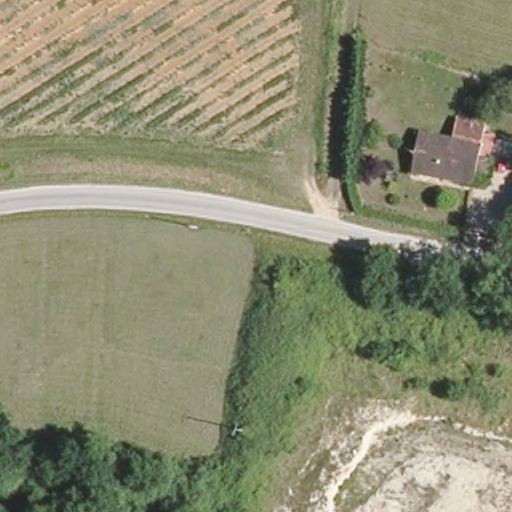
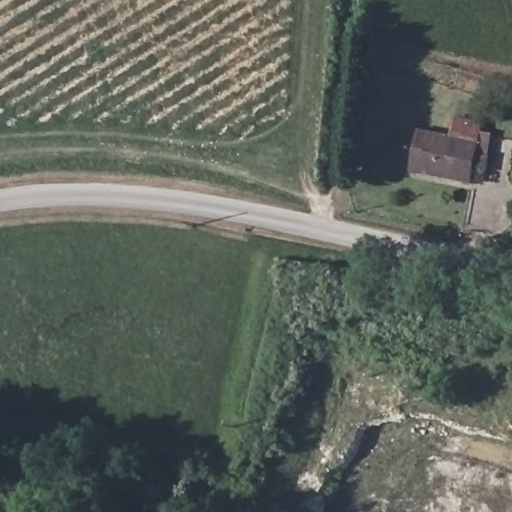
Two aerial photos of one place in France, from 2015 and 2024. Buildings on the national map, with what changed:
unchanged [(453,130),(455,113),(484,116),(480,149),(493,150),(490,166),(477,165),(475,182),(411,173),(416,125),(453,130)]

